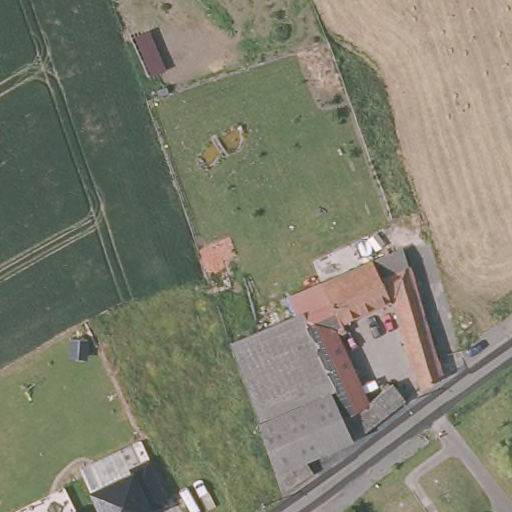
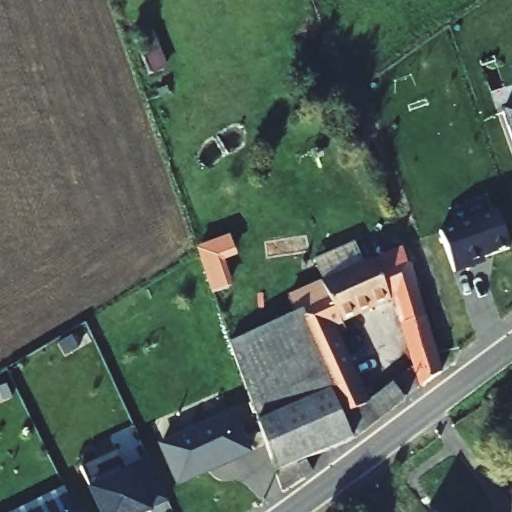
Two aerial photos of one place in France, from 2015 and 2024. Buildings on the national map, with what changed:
new [(512,108),(512,137),(503,111),(512,108)]
new [(496,211),(509,247),(482,257),(483,261),(454,271),(439,232),(496,211)]
new [(213,292),(196,249),(231,236),(238,256),(223,261),(231,285),(213,292)]
unchanged [(321,284),(374,260),(404,248),(436,357),(438,363),(439,371),(423,386),(395,297),(339,320),(329,296),(296,313),(291,298),(321,284)]
unchanged [(296,313),(329,296),(339,320),(341,326),(331,330),(364,403),(394,383),(405,400),(399,405),(357,437),(306,461),(313,472),(281,491),(256,421),(258,421),(229,342),(296,313)]
new [(176,487),(156,441),(233,407),(251,453),(176,487)]
unchanged [(129,468),(148,460),(168,503),(149,511),(150,512),(98,512),(89,490),(80,467),(119,450),(129,468)]
unchanged [(76,510),(77,512),(73,512),(76,510)]

